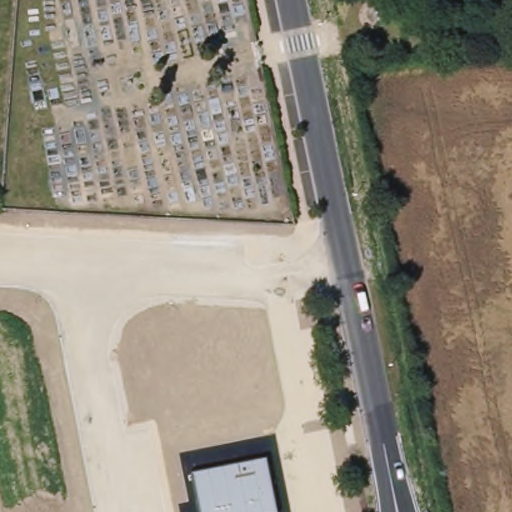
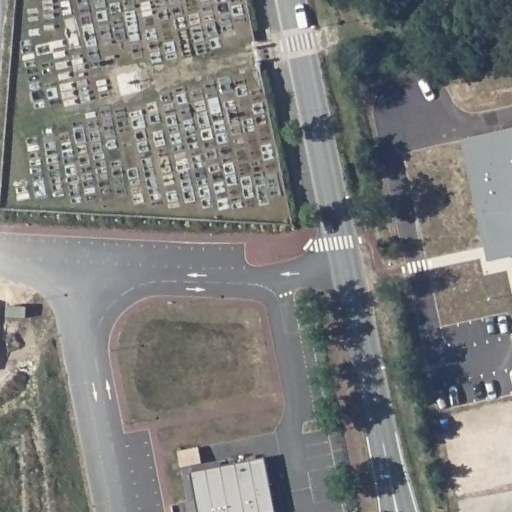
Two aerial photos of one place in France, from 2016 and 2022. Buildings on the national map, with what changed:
new [(512,259),(499,261),(472,136),(512,128),(512,259)]
unchanged [(265,458),(276,512),(200,512),(192,473),(265,458)]

